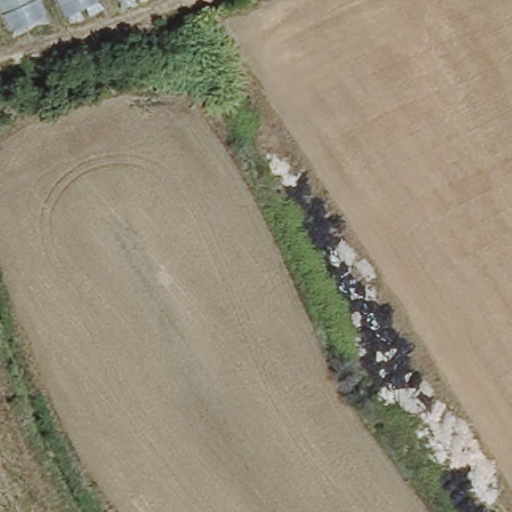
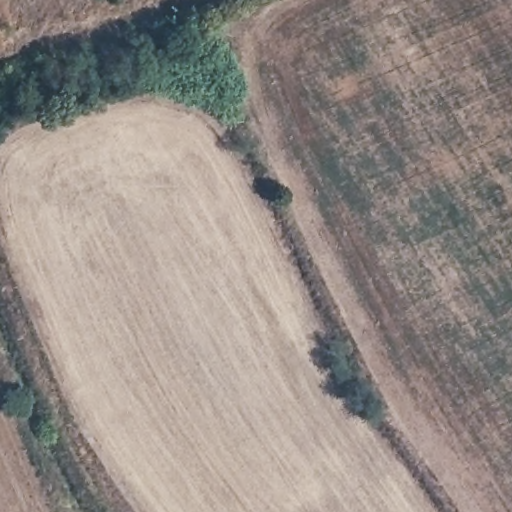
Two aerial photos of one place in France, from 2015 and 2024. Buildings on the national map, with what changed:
demolished [(151,0),(0,45),(0,0),(151,0)]

